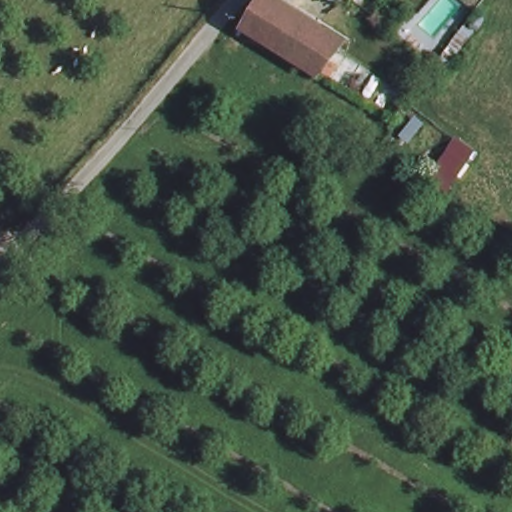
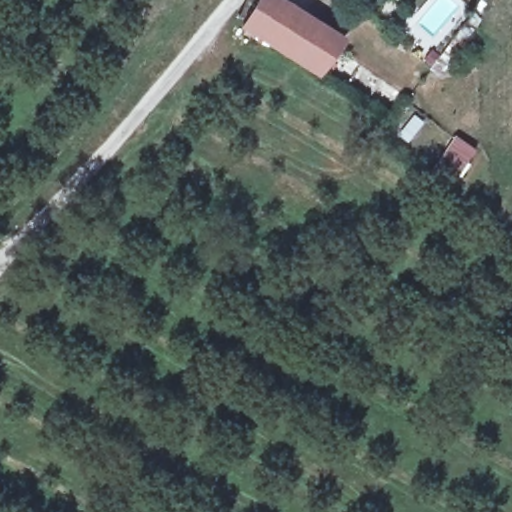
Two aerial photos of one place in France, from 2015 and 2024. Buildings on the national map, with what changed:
unchanged [(321,66),(246,20),(251,15),(260,0),(271,0),(337,43),(321,66)]

